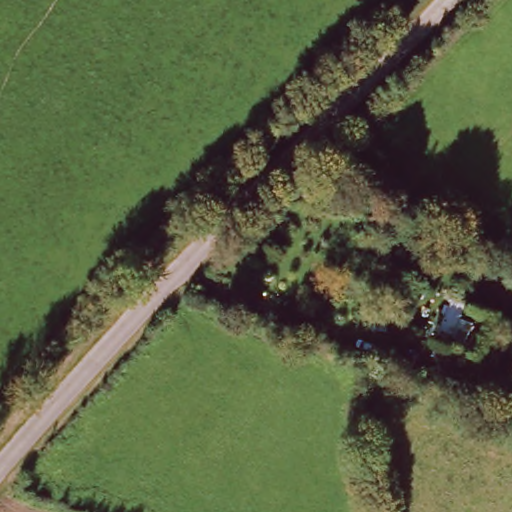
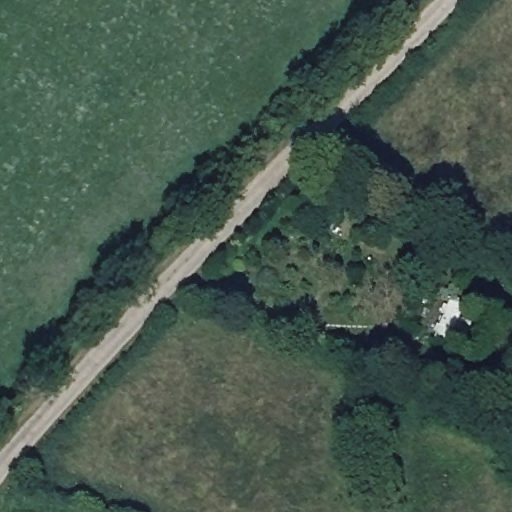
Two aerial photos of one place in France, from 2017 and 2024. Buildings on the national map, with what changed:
unchanged [(434,341),(451,300),(467,305),(452,349),(434,341)]

